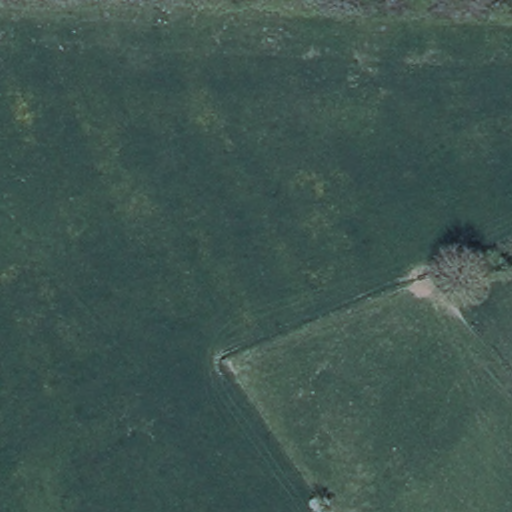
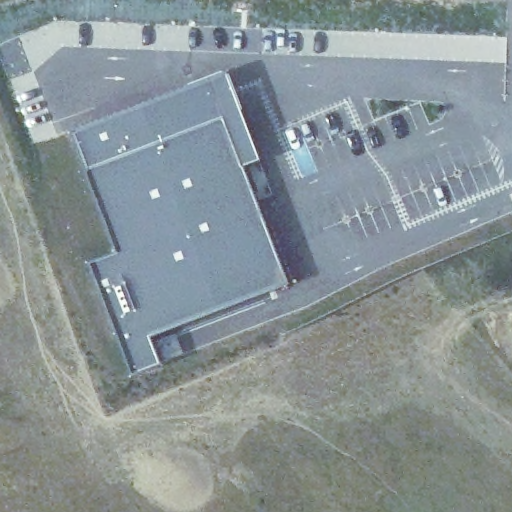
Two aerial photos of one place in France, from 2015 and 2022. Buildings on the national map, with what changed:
new [(222,71),(252,149),(236,155),(210,85),(70,140),(67,131),(222,71)]
new [(210,85),(236,155),(252,149),(257,160),(240,166),(285,283),(147,336),(157,363),(128,375),(85,262),(113,252),(70,140),(210,85)]

